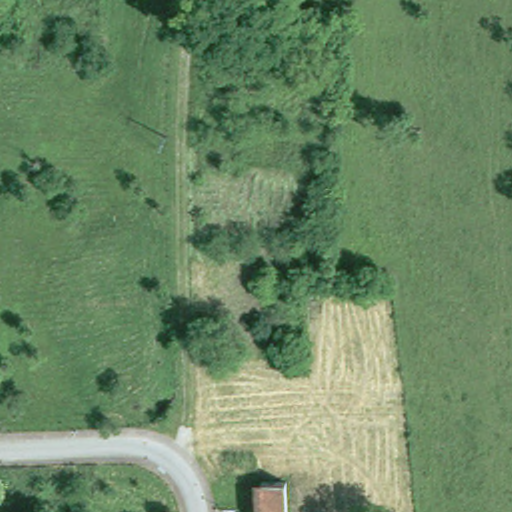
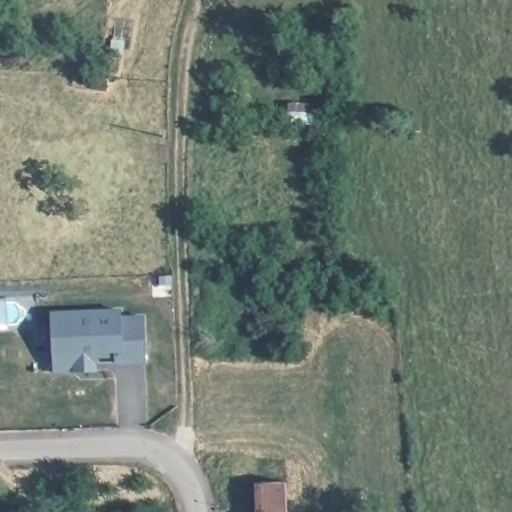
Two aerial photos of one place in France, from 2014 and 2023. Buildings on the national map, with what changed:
new [(123,308),(123,315),(143,315),(145,365),(115,365),(115,357),(98,358),(98,372),(52,372),(51,310),(123,308)]
unchanged [(286,479),(286,512),(263,512),(263,480),(286,479)]

